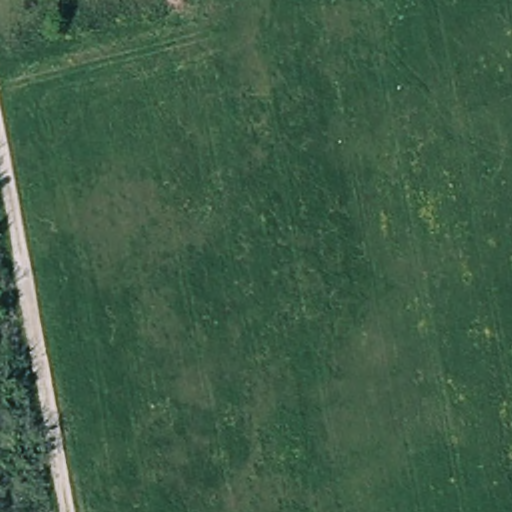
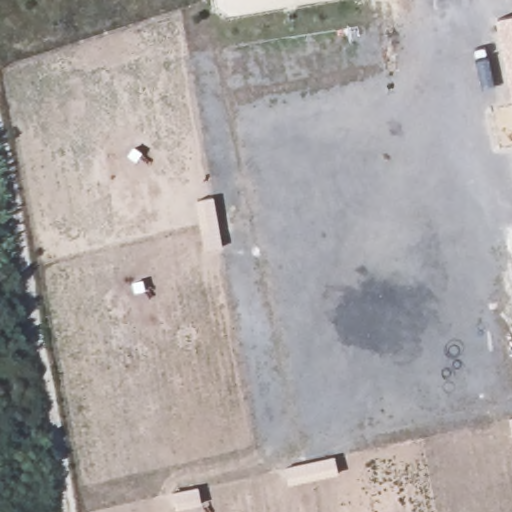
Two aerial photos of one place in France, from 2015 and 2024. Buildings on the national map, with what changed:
new [(512,16),(512,101),(496,19),(512,16)]

